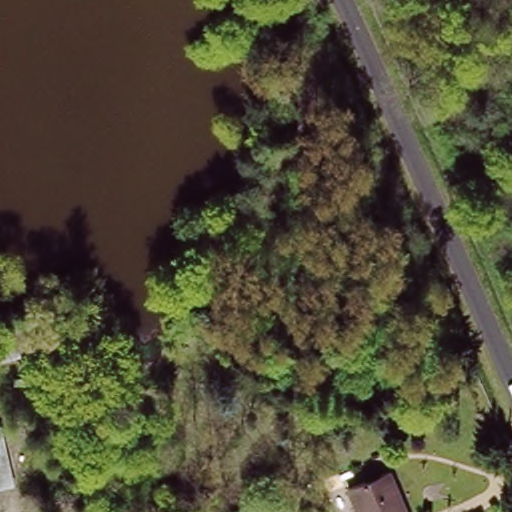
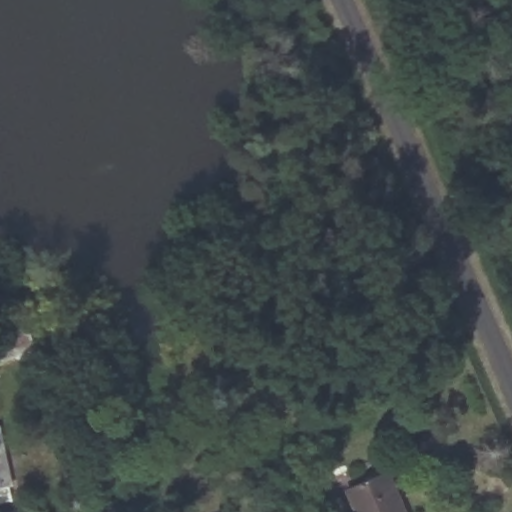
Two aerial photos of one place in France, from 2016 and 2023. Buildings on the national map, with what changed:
unchanged [(0,364),(0,332),(36,323),(43,352),(0,364)]
unchanged [(0,427),(4,426),(13,490),(0,493),(0,427)]
unchanged [(405,512),(360,512),(349,487),(387,470),(405,512)]

